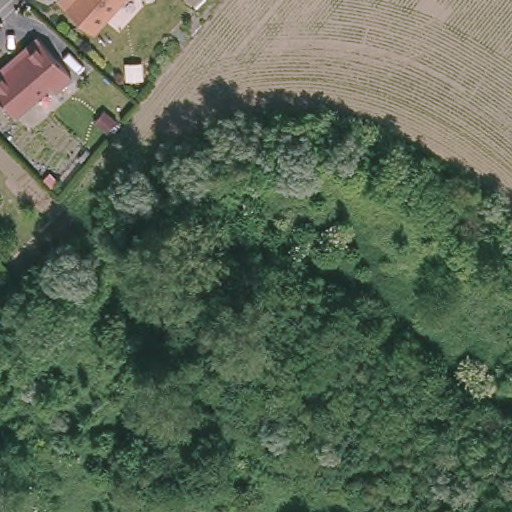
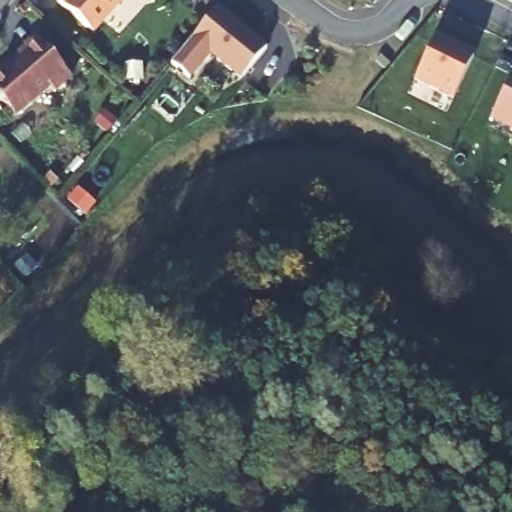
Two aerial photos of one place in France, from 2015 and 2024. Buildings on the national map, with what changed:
unchanged [(124,0),(93,34),(58,2),(60,0),(124,0)]
new [(267,49),(241,80),(211,55),(190,80),(172,65),(218,9),(267,49)]
new [(455,97),(417,79),(438,34),(453,41),(452,44),(476,56),(455,97)]
unchanged [(0,77),(23,56),(21,54),(38,39),(73,78),(55,93),(50,87),(16,117),(0,99),(0,77)]
new [(386,69),(377,60),(381,55),(391,63),(386,69)]
new [(512,79),(512,125),(494,116),(512,79)]

